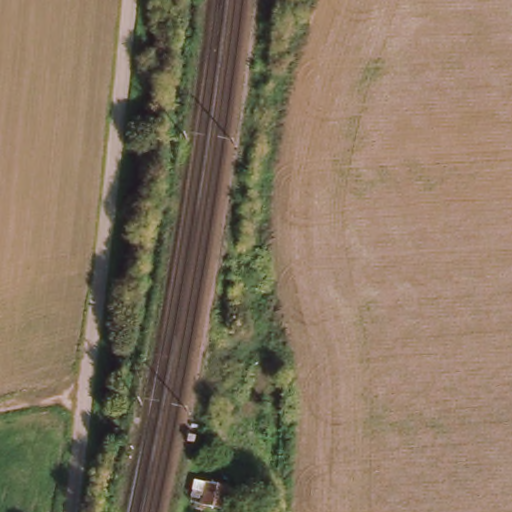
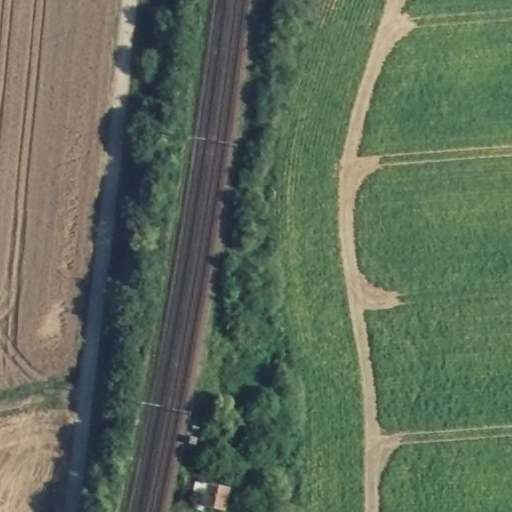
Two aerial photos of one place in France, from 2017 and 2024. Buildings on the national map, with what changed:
unchanged [(227,491),(224,510),(205,506),(208,487),(227,491)]

